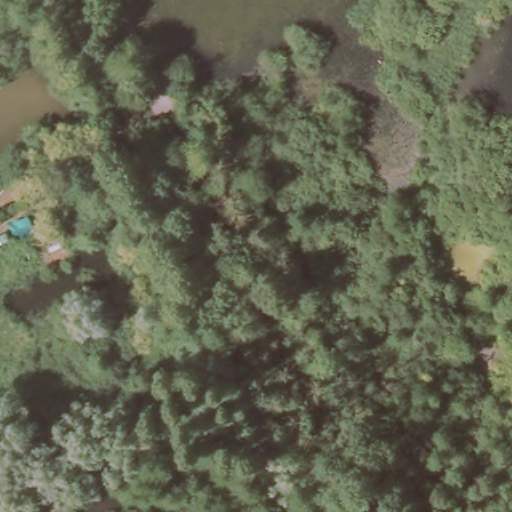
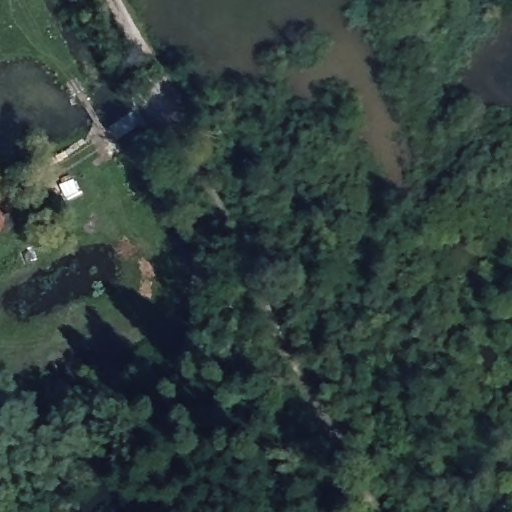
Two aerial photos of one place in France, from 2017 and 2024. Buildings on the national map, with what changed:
unchanged [(13,450),(36,447),(41,481),(16,483),(13,450)]

